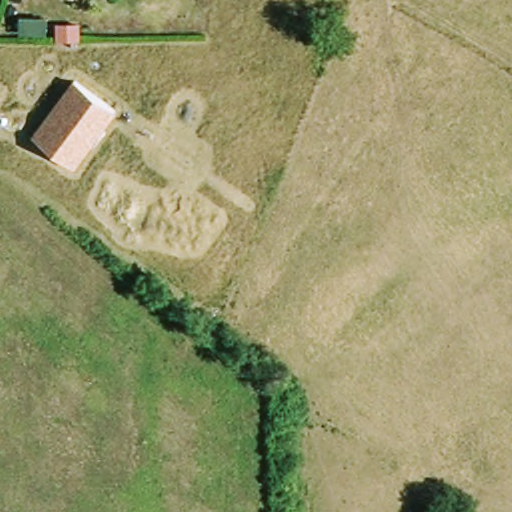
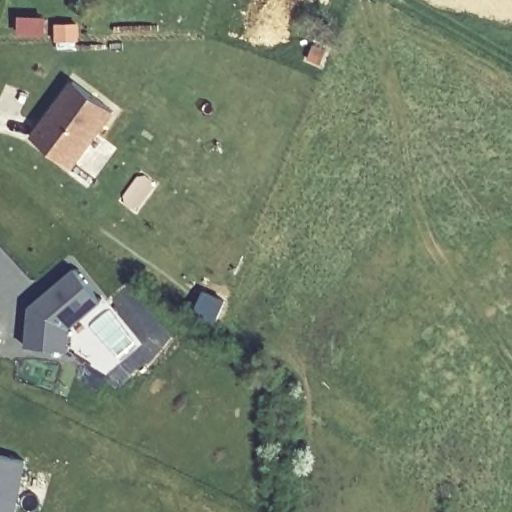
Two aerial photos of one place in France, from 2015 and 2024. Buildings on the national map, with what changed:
unchanged [(66,49),(48,49),(49,33),(66,33),(66,49)]
unchanged [(115,110),(72,170),(30,139),(73,78),(115,110)]
new [(29,307),(74,269),(103,302),(70,329),(68,351),(48,355),(26,348),(29,307)]
new [(16,512),(0,512),(0,456),(27,462),(16,512)]

